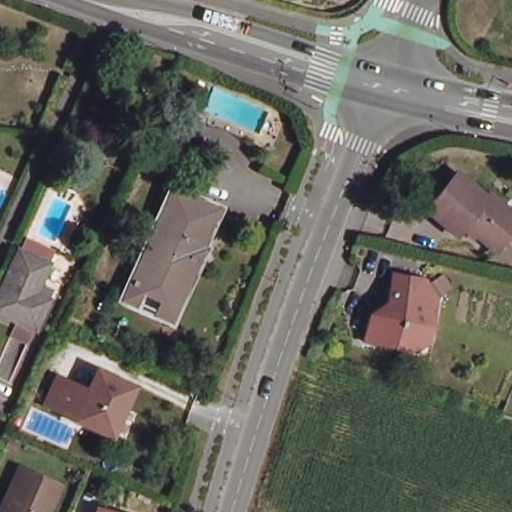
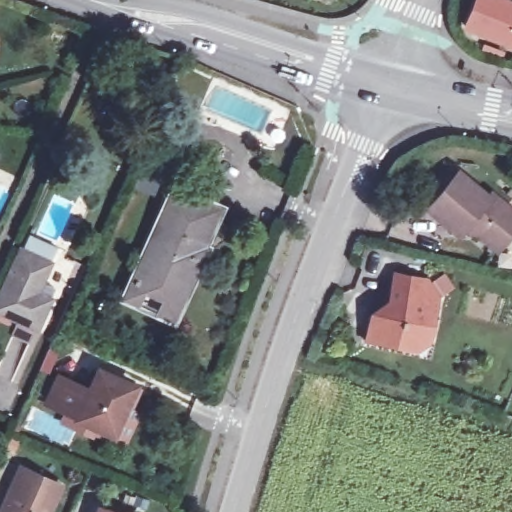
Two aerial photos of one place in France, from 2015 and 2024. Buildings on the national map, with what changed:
new [(512,0),(512,52),(505,49),(503,56),(480,49),(484,40),(460,30),(472,0),(512,0)]
unchanged [(505,237),(489,252),(462,224),(456,230),(442,216),(439,219),(423,204),(458,170),(485,198),(489,194),(512,218),(512,229),(505,237)]
unchanged [(144,256),(147,258),(157,235),(154,234),(174,188),(219,209),(200,253),(192,249),(169,306),(130,289),(144,256)]
unchanged [(30,332),(0,319),(0,285),(13,256),(15,257),(20,244),(48,256),(30,297),(43,304),(30,332)]
unchanged [(169,306),(192,249),(200,253),(203,254),(174,322),(125,299),(130,289),(169,306)]
unchanged [(425,339),(410,336),(407,349),(360,338),(365,314),(372,317),(386,306),(382,300),(390,270),(422,279),(435,297),(425,339)]
unchanged [(450,287),(440,294),(431,282),(442,274),(450,287)]
unchanged [(80,414),(80,412),(50,398),(62,371),(92,384),(102,364),(137,381),(115,430),(80,414)]
unchanged [(26,469),(68,488),(58,512),(7,512),(26,469)]
unchanged [(99,508),(115,512),(98,512),(99,508)]

